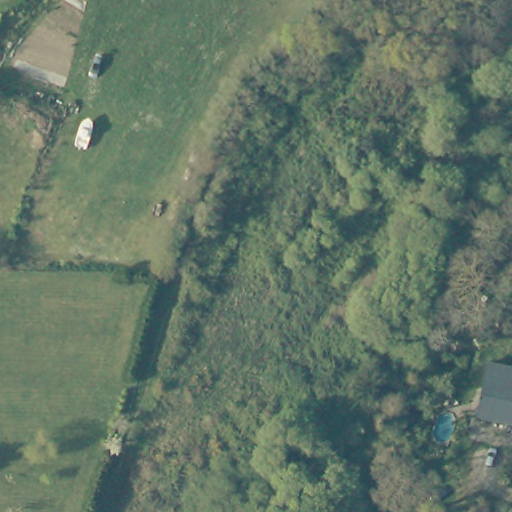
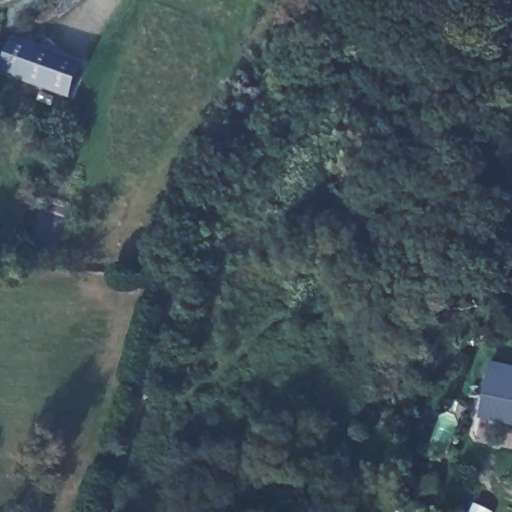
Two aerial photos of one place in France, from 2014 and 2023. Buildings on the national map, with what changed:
new [(83,60),(70,97),(0,73),(0,66),(12,36),(83,60)]
unchanged [(483,366),(512,372),(512,416),(475,408),(477,393),(483,366)]

